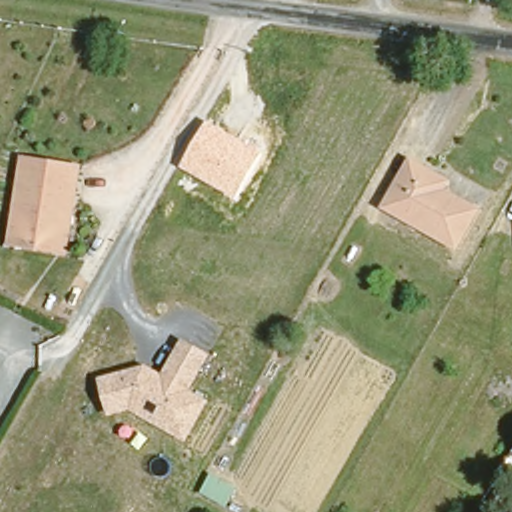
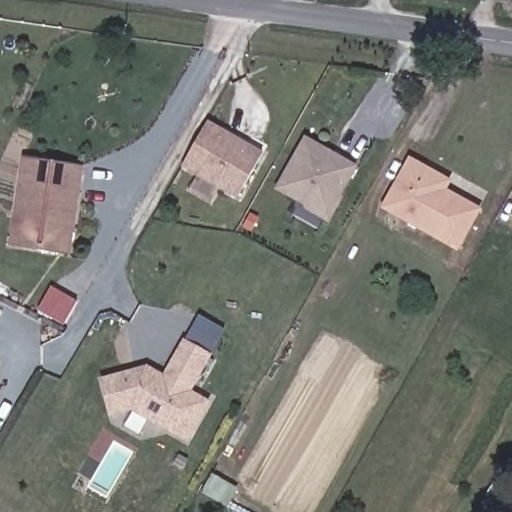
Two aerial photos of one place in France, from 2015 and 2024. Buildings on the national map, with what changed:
unchanged [(265,153),(237,200),(181,168),(208,121),(265,153)]
new [(343,198),(329,223),(305,208),(306,206),(274,188),(305,135),(358,167),(341,196),(343,198)]
unchanged [(65,253),(55,251),(6,246),(16,162),(63,166),(74,167),(65,253)]
unchanged [(381,205),(406,162),(443,182),(438,190),(473,209),(454,246),(381,205)]
unchanged [(164,373),(183,339),(187,341),(199,317),(223,330),(211,353),(213,354),(192,390),(211,400),(189,443),(132,411),(111,417),(99,378),(146,365),(164,373)]

